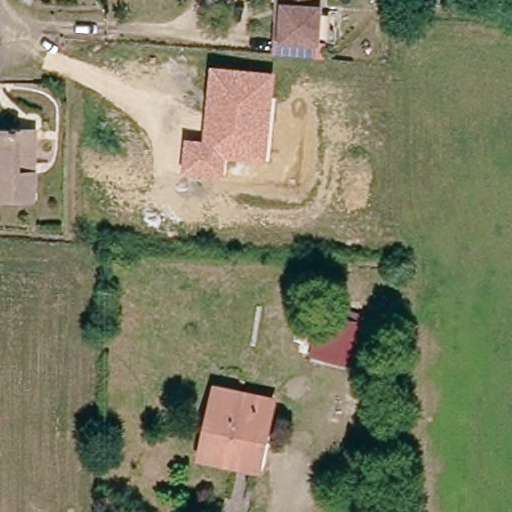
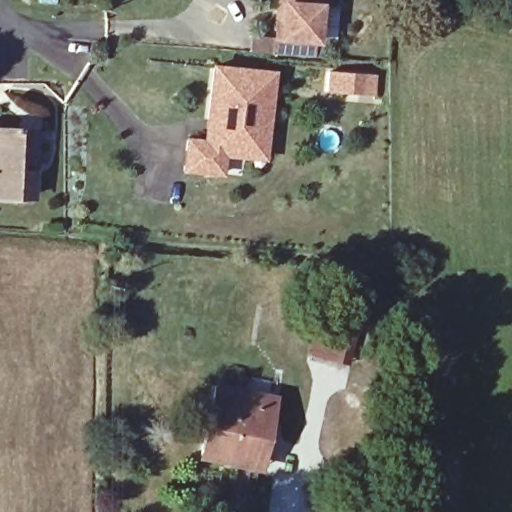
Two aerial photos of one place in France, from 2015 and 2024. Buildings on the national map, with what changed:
unchanged [(278,0),(284,0),(282,36),(314,39),(313,54),(275,51),(278,0)]
unchanged [(319,39),(314,39),(282,36),(284,0),(322,0),(319,39)]
unchanged [(277,70),(266,163),(224,160),(223,179),(183,176),(185,138),(203,139),(211,66),(277,70)]
new [(377,74),(376,94),(325,89),(327,69),(377,74)]
unchanged [(26,131),(41,131),(40,173),(39,199),(0,198),(0,130),(26,131)]
unchanged [(328,295),(360,302),(346,363),(314,356),(328,295)]
unchanged [(258,470),(204,458),(220,387),(243,392),(278,399),(276,410),(272,431),(263,470),(258,470)]

